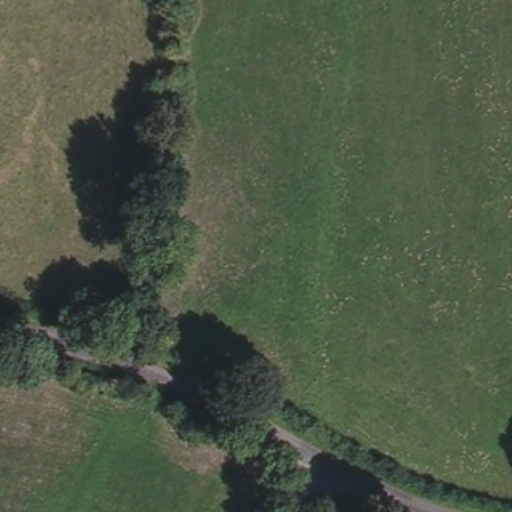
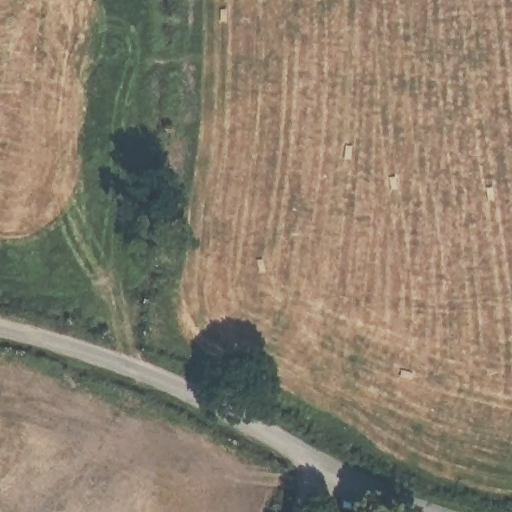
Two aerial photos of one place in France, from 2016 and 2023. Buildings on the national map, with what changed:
[]

